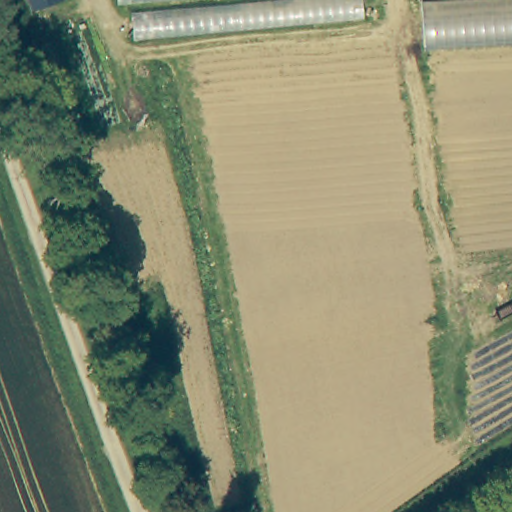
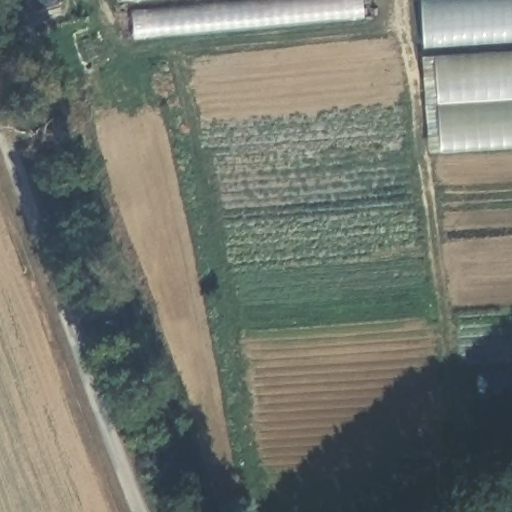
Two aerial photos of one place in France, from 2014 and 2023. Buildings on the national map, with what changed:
unchanged [(59,0),(32,9),(29,0),(59,0)]
unchanged [(132,2),(130,3),(130,0),(361,0),(362,19),(133,40),(132,2)]
unchanged [(421,0),(512,0),(512,42),(423,48),(421,0)]
new [(512,149),(439,155),(434,57),(512,52),(512,149)]

